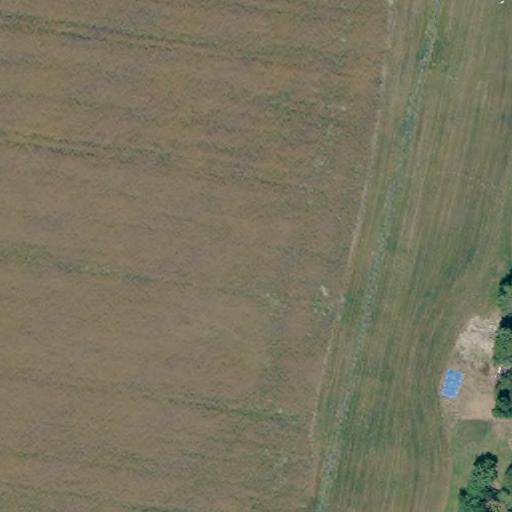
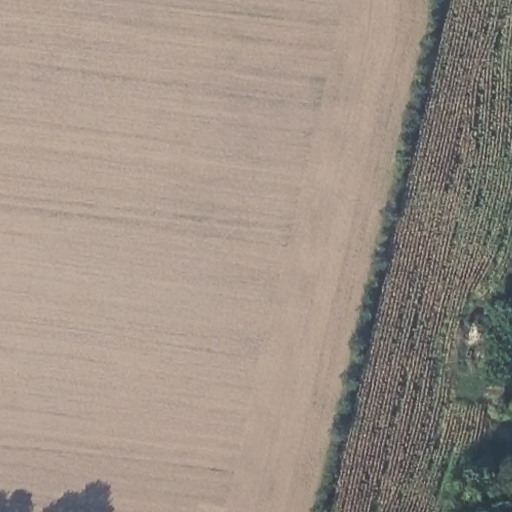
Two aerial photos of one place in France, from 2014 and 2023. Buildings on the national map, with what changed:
[]

